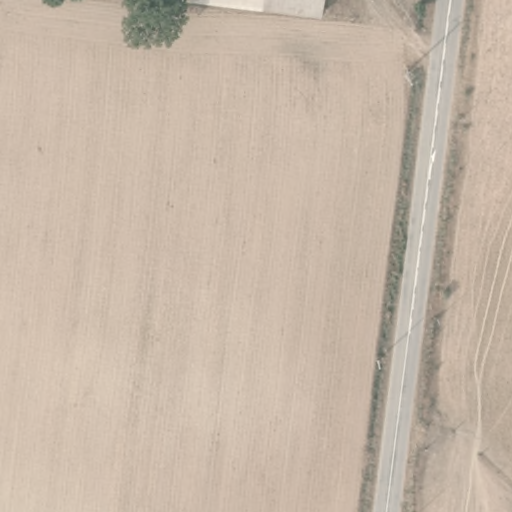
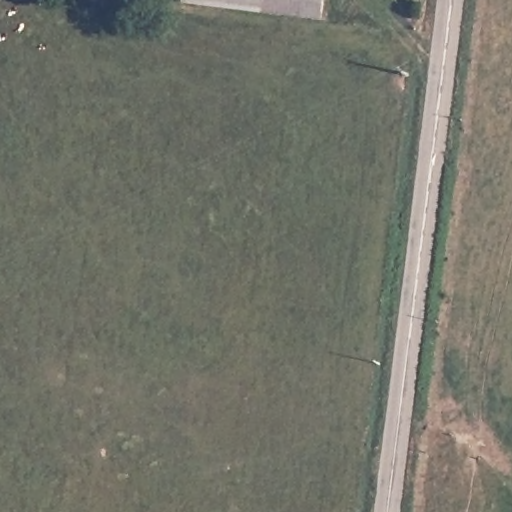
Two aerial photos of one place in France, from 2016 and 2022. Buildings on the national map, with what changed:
unchanged [(192,0),(323,0),(322,10),(321,17),(286,9),(192,0)]

